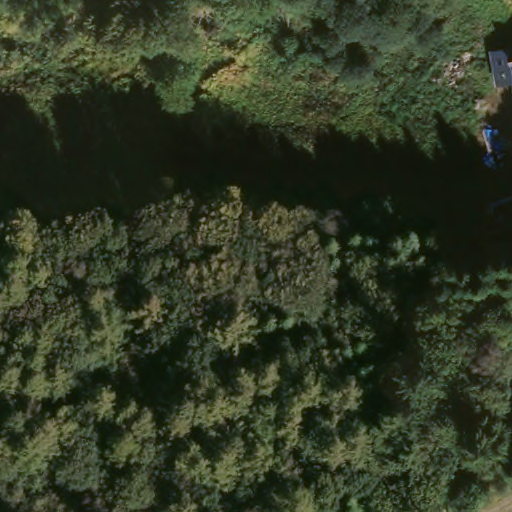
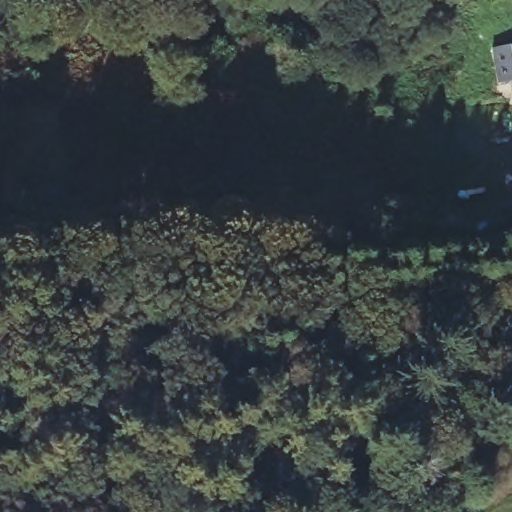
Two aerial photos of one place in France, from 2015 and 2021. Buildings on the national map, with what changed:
unchanged [(502,44),(512,41),(512,88),(502,44)]

